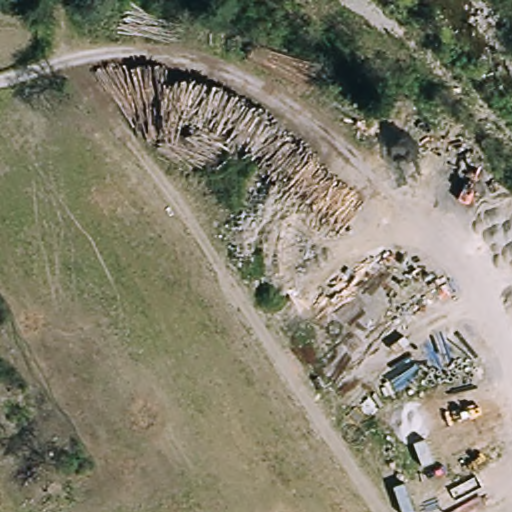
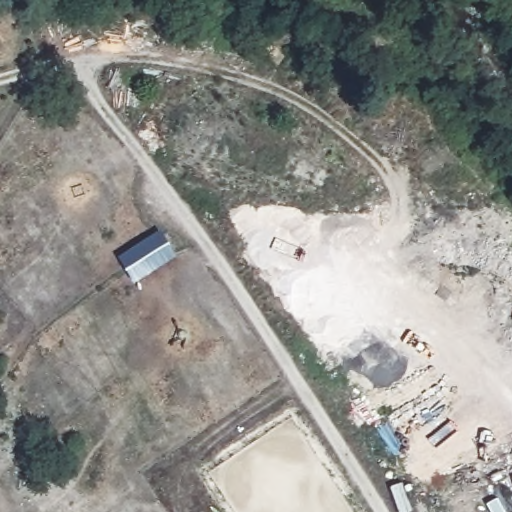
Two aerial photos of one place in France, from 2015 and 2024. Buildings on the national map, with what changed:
new [(161,230),(177,256),(137,282),(120,256),(161,230)]

